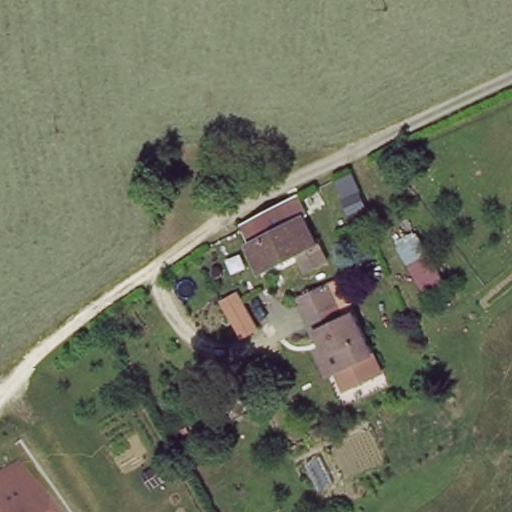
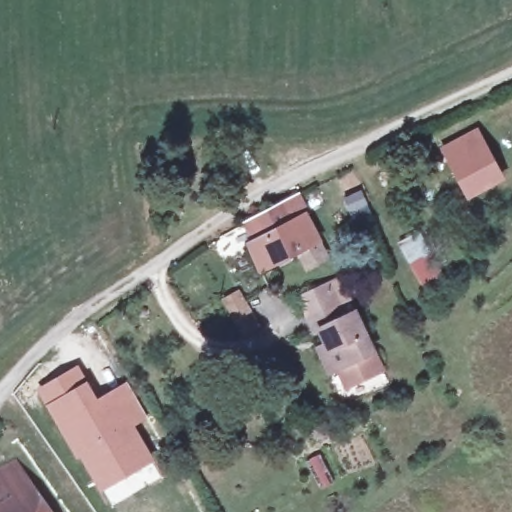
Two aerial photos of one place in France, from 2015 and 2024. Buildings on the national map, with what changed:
new [(470,197),(452,167),(444,153),(475,135),(483,148),(501,178),(470,197)]
unchanged [(294,258),(263,274),(241,227),(281,208),(288,222),(297,218),(316,248),(328,267),(305,278),(294,258)]
unchanged [(336,304),(307,317),(296,297),(328,282),(336,304)]
unchanged [(354,384),(334,345),(324,350),(322,346),(307,317),(336,304),(352,332),(365,325),(374,343),(387,368),(354,384)]
unchanged [(322,346),(324,350),(334,345),(354,384),(339,392),(331,373),(321,378),(308,352),(322,346)]
new [(78,362),(98,396),(127,380),(148,418),(135,426),(155,461),(101,492),(70,447),(35,388),(78,362)]
new [(155,461),(163,477),(111,507),(101,492),(155,461)]
unchanged [(14,463),(30,488),(0,508),(0,470),(14,463)]
unchanged [(30,488),(48,512),(0,512),(0,508),(30,488)]

